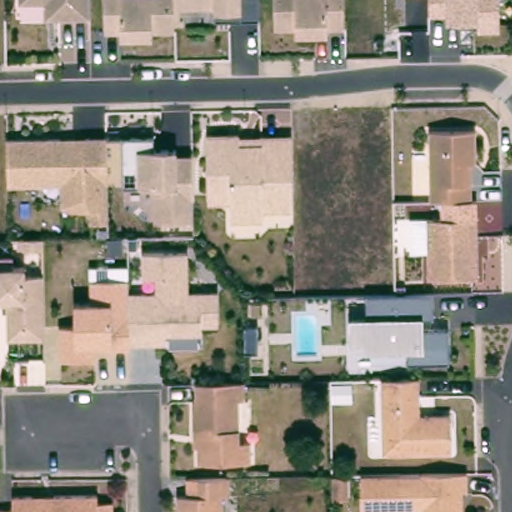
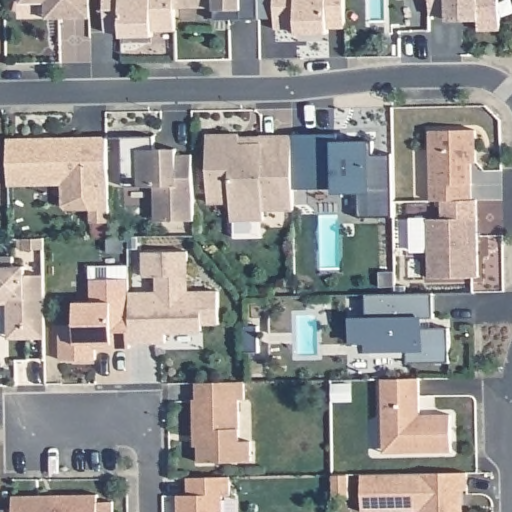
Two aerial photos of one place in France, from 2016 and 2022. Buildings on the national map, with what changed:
unchanged [(94,15),(49,20),(48,1),(23,1),(23,0),(93,0),(94,15)]
unchanged [(258,18),(214,19),(214,6),(177,6),(176,27),(154,27),(154,34),(121,34),(120,27),(105,27),(105,0),(258,0),(258,18)]
unchanged [(347,25),(330,25),(328,31),(295,32),(293,25),(275,25),(274,0),(346,0),(347,25)]
unchanged [(501,30),(478,30),(477,18),(445,18),(445,12),(428,12),(428,0),(500,0),(501,30)]
unchanged [(480,129),(479,201),(435,201),(433,130),(480,129)]
unchanged [(293,131),(294,209),(263,209),(264,220),(230,220),(229,202),(209,202),(206,132),(293,131)]
unchanged [(154,133),(154,145),(176,145),(176,152),(193,152),(195,221),(154,221),(152,184),(123,185),(122,134),(154,133)]
new [(393,215),(360,214),(360,191),(335,191),(335,185),(294,187),(293,135),(338,133),(339,140),(370,140),(370,152),(392,154),(393,215)]
unchanged [(107,134),(109,220),(90,220),(90,209),(62,210),(61,185),(9,185),(9,135),(107,134)]
unchanged [(480,276),(427,277),(427,217),(441,215),(442,201),(479,201),(480,276)]
unchanged [(75,328),(75,300),(91,299),(90,277),(90,264),(129,263),(130,290),(156,290),(156,275),(142,276),(142,250),(189,249),(188,288),(220,288),(220,321),(204,322),(204,330),(167,331),(167,341),(131,342),(131,348),(96,348),(98,359),(60,360),(60,338),(75,337),(75,328)]
unchanged [(15,265),(26,264),(27,273),(44,273),(45,337),(8,337),(6,303),(0,303),(0,254),(15,254),(15,265)]
unchanged [(434,291),(435,316),(423,316),(423,328),(448,327),(449,360),(370,362),(370,350),(351,350),(350,315),(366,315),(368,293),(434,291)]
unchanged [(388,434),(387,379),(423,378),(425,414),(455,413),(457,451),(407,452),(389,452),(388,434)]
unchanged [(249,386),(250,403),(244,403),(245,446),(255,445),(256,465),(205,465),(204,439),(200,439),(199,402),(201,402),(201,387),(249,386)]
unchanged [(347,473),(347,497),(332,497),(331,473),(347,473)]
unchanged [(476,493),(465,493),(465,512),(430,512),(371,512),(370,478),(409,477),(475,476),(476,493)]
unchanged [(235,500),(228,500),(228,512),(183,512),(183,499),(193,498),(193,481),(235,480),(235,500)]
unchanged [(102,498),(102,505),(117,505),(118,512),(18,512),(18,500),(38,500),(60,499),(102,498)]

